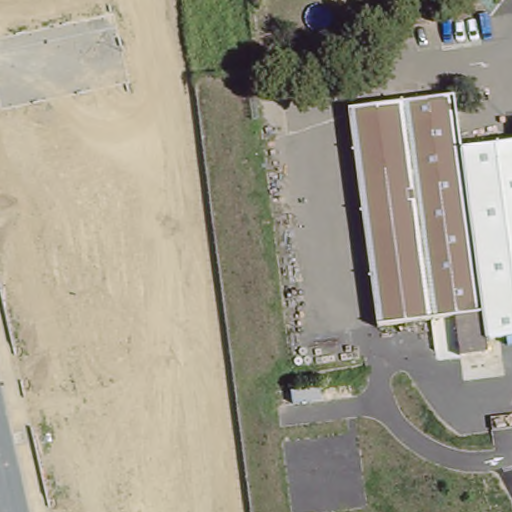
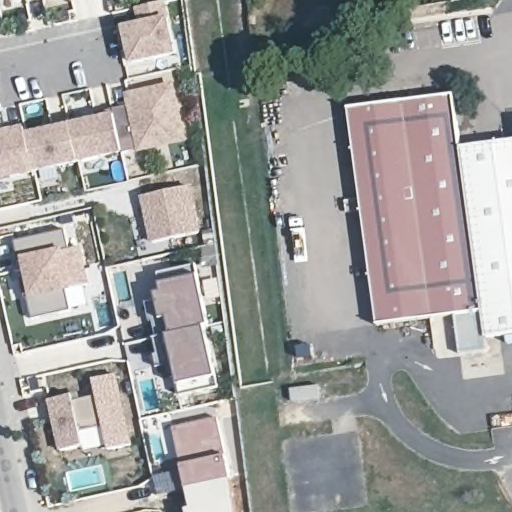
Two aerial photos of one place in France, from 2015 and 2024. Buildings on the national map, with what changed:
new [(29,0),(26,1),(14,2),(13,0),(29,0)]
unchanged [(141,25),(137,8),(163,2),(175,54),(132,64),(125,29),(141,25)]
new [(130,106),(128,97),(172,87),(185,141),(123,154),(123,152),(113,110),(130,106)]
unchanged [(455,315),(371,322),(347,111),(392,105),(459,99),(463,140),(485,312),(455,315)]
new [(97,120),(95,114),(113,110),(123,152),(79,162),(71,126),(97,120)]
new [(0,179),(0,116),(5,115),(7,128),(8,134),(26,130),(27,136),(35,172),(0,179)]
new [(53,130),(51,124),(70,120),(71,126),(79,162),(35,172),(27,136),(53,130)]
unchanged [(512,333),(488,336),(485,312),(463,140),(512,138),(512,333)]
unchanged [(187,187),(197,234),(153,244),(142,197),(187,187)]
new [(25,262),(20,263),(15,242),(65,231),(70,251),(80,248),(88,286),(66,291),(71,312),(32,321),(27,298),(25,299),(20,280),(28,278),(25,262)]
new [(149,321),(157,320),(152,295),(172,291),(168,271),(192,266),(206,326),(152,338),(149,321)]
new [(172,291),(158,294),(153,275),(168,271),(172,291)]
new [(146,322),(143,312),(155,308),(157,320),(146,322)]
unchanged [(490,347),(460,350),(455,315),(485,312),(488,336),(490,347)]
new [(201,327),(215,388),(177,397),(172,378),(165,380),(160,354),(153,356),(150,339),(201,327)]
new [(72,397),(74,402),(97,397),(93,381),(115,376),(131,446),(109,451),(104,428),(81,433),(84,447),(62,452),(50,401),(72,397)]
new [(176,470),(176,472),(181,472),(172,427),(216,417),(230,479),(185,489),(157,494),(152,475),(176,470)]
new [(230,479),(236,512),(186,512),(185,509),(189,508),(185,489),(230,479)]

